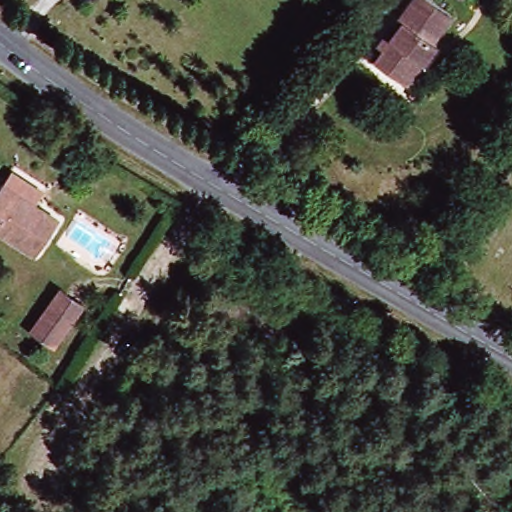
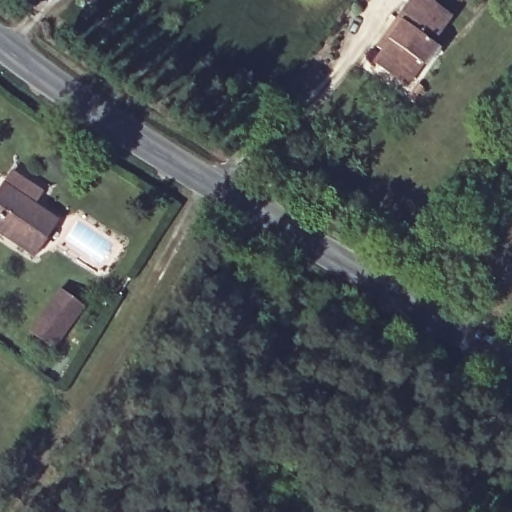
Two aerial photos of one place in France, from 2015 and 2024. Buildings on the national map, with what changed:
unchanged [(392,79),(377,67),(385,58),(375,51),(412,0),(428,0),(450,16),(432,42),(439,47),(416,81),(408,91),(392,79)]
unchanged [(463,2),(460,0),(464,0),(463,2)]
unchanged [(31,257),(0,235),(0,186),(4,181),(12,169),(42,190),(34,202),(57,219),(31,257)]
unchanged [(34,331),(59,290),(84,306),(59,346),(34,331)]

